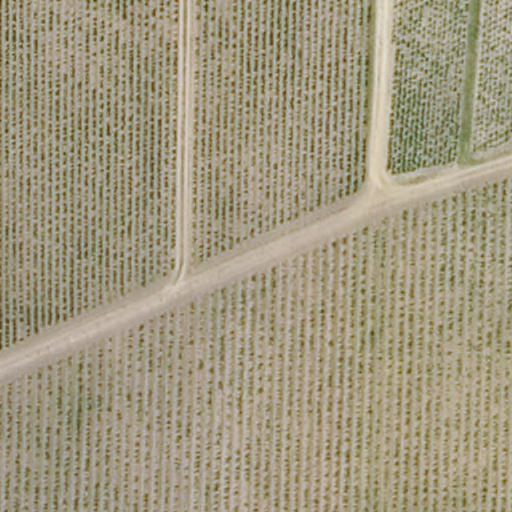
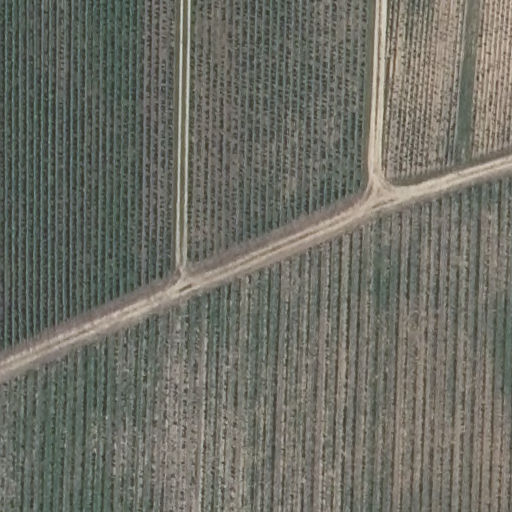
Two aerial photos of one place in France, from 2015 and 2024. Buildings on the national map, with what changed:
[]

